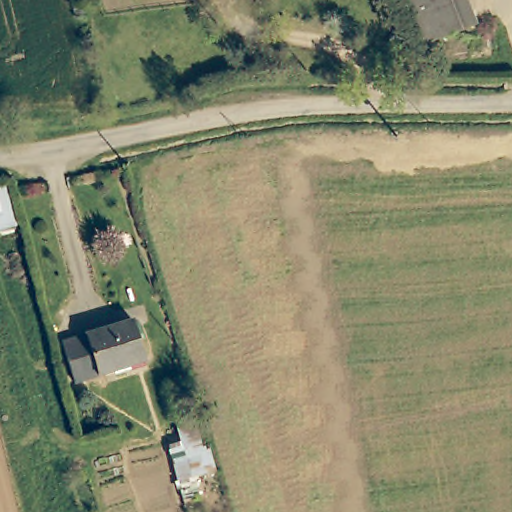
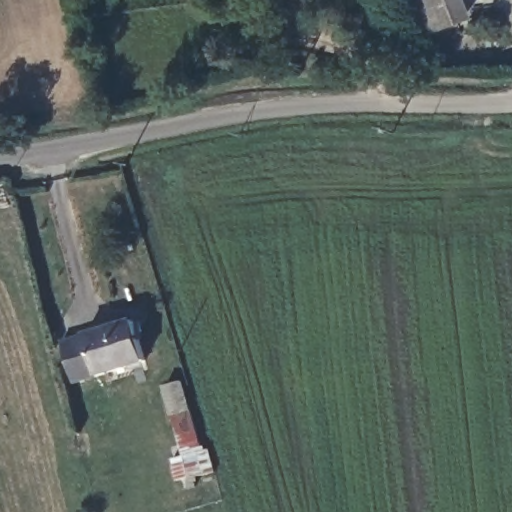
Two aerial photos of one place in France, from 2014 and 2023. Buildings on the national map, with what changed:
unchanged [(460,29),(420,42),(404,0),(449,0),(460,29)]
unchanged [(134,318),(146,358),(73,380),(61,339),(134,318)]
unchanged [(182,456),(163,384),(181,379),(202,447),(208,445),(215,469),(178,481),(171,459),(182,456)]

